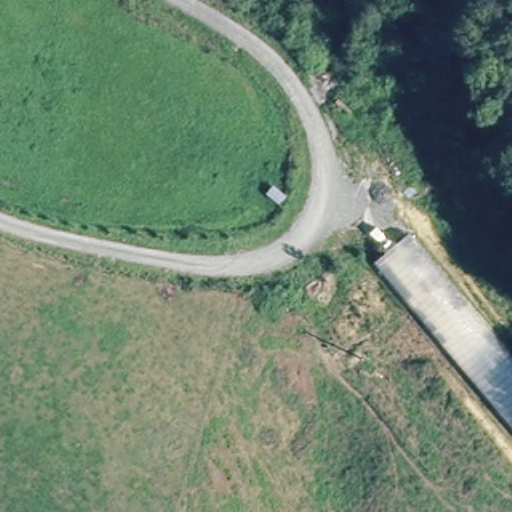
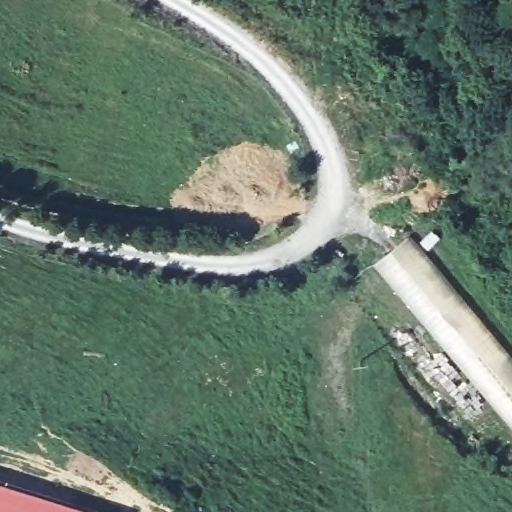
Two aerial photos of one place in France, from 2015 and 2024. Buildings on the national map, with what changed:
new [(104,512),(0,512),(0,479),(104,512)]

